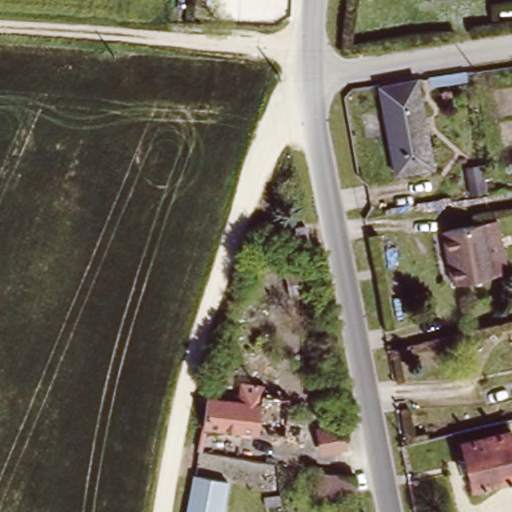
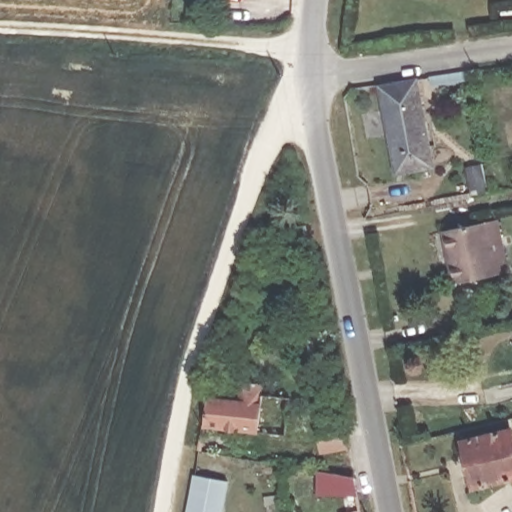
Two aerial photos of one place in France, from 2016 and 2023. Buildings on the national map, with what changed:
unchanged [(415,78),(430,160),(431,165),(392,172),(392,167),(378,84),(415,78)]
unchanged [(483,189),(470,191),(465,160),(479,158),(483,189)]
unchanged [(488,276),(452,282),(441,231),(490,221),(498,258),(501,273),(488,276)]
unchanged [(312,250),(296,250),(292,227),(306,225),(312,250)]
unchanged [(260,401),(258,427),(204,423),(209,397),(260,401)]
unchanged [(348,447),(323,453),(318,430),(343,425),(348,447)]
unchanged [(473,487),(461,441),(508,428),(512,442),(512,478),(473,487)]
unchanged [(356,477),(361,495),(325,500),(320,472),(356,477)]
unchanged [(195,475),(227,480),(221,512),(187,512),(195,475)]

